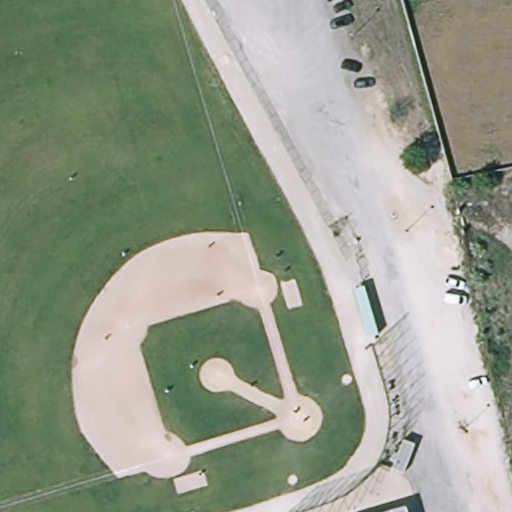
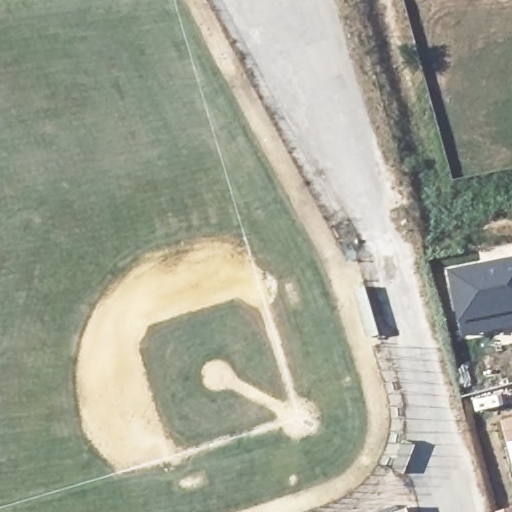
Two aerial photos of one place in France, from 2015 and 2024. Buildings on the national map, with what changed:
new [(444,270),(512,255),(512,308),(454,320),(444,270)]
unchanged [(381,336),(369,339),(355,291),(369,288),(381,336)]
new [(454,320),(512,308),(512,323),(457,334),(454,320)]
new [(502,440),(497,422),(512,417),(512,437),(502,440)]
unchanged [(408,512),(392,512),(407,508),(408,512)]

